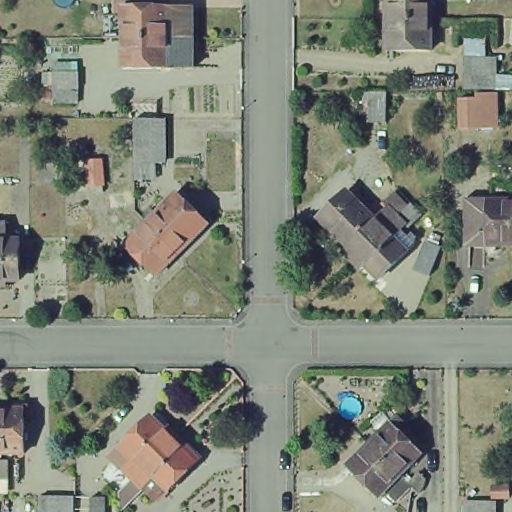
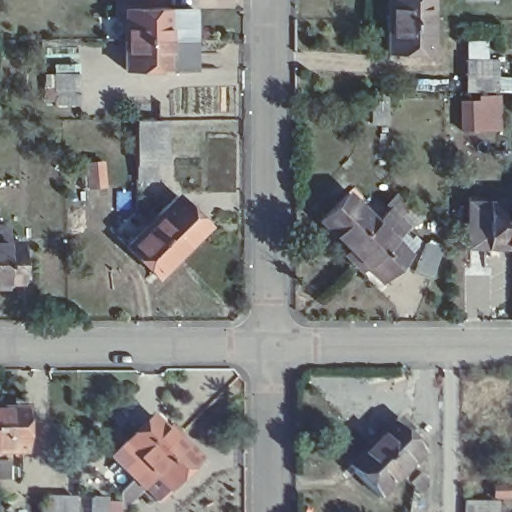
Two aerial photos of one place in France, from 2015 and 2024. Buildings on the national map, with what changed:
unchanged [(117,15),(116,0),(152,0),(152,15),(169,15),(192,15),(192,46),(193,76),(169,76),(124,77),(125,46),(124,15),(117,15)]
unchanged [(432,0),(432,23),(387,23),(387,0),(432,0)]
unchanged [(387,23),(432,23),(432,54),(387,54),(387,23)]
unchanged [(471,61),(502,61),(502,77),(472,78),(471,61)]
unchanged [(55,76),(80,76),(80,91),(55,92),(55,76)]
unchanged [(387,95),(387,125),(369,125),(369,95),(387,95)]
unchanged [(482,97),(501,96),(502,131),(483,131),(467,131),(465,101),(482,101),(482,97)]
unchanged [(134,121),(160,122),(160,151),(160,166),(132,165),(133,151),(134,121)]
unchanged [(72,165),(87,163),(102,161),(105,187),(89,188),(75,189),(72,165)]
unchanged [(370,287),(356,273),(351,278),(342,269),(334,260),(338,255),(324,241),(310,227),(337,199),(343,194),(365,216),(372,209),(377,215),(387,224),(402,211),(412,221),(397,235),(395,233),(384,245),(397,260),(370,287)]
unchanged [(129,196),(129,210),(115,210),(114,197),(129,196)]
unchanged [(173,201),(205,232),(174,262),(143,231),(173,201)]
unchanged [(477,203),(498,203),(512,203),(512,247),(497,247),(477,248),(477,225),(477,203)]
unchanged [(7,226),(7,244),(20,244),(20,283),(7,283),(7,289),(0,289),(0,226),(7,226)]
unchanged [(143,231),(174,262),(152,284),(122,252),(143,231)]
unchanged [(415,273),(425,245),(440,251),(430,279),(415,273)]
unchanged [(26,412),(26,456),(0,456),(0,412),(26,412)]
unchanged [(115,463),(115,461),(114,460),(115,458),(116,456),(125,446),(152,419),(167,434),(171,430),(180,438),(189,447),(184,452),(197,466),(170,493),(168,492),(157,503),(145,491),(144,492),(135,483),(122,496),(113,487),(126,474),(115,463)]
unchanged [(387,430),(419,461),(397,483),(365,452),(387,430)]
unchanged [(365,452),(397,483),(375,506),(344,474),(365,452)]
unchanged [(420,495),(411,486),(422,475),(428,481),(425,492),(420,495)]
unchanged [(494,488),(509,488),(510,501),(495,501),(494,488)]
unchanged [(46,495),(65,495),(65,512),(46,512),(46,495)]
unchanged [(95,501),(110,501),(110,512),(95,512),(95,501)]
unchanged [(465,503),(497,504),(496,512),(465,512),(465,503)]

